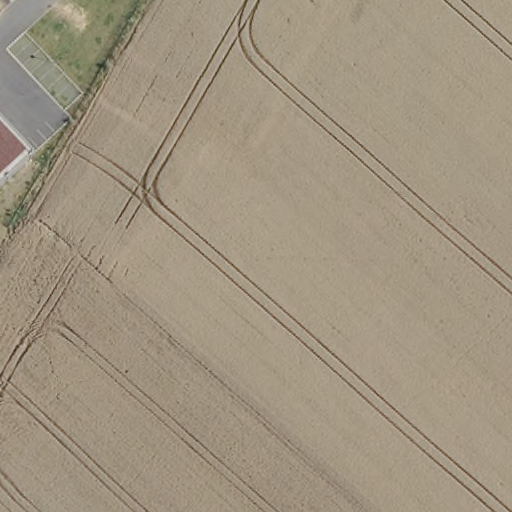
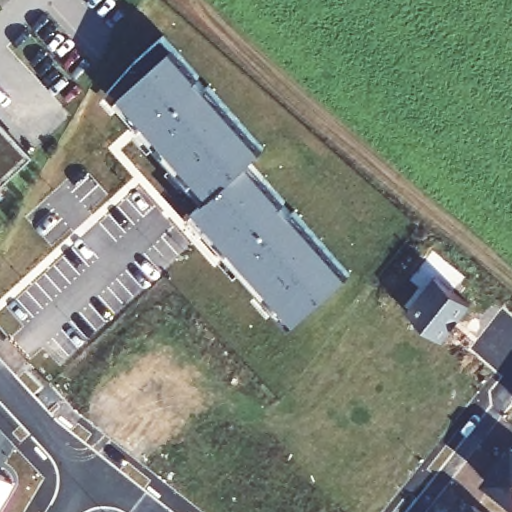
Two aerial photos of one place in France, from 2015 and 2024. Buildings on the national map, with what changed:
new [(136,61),(163,36),(264,146),(249,160),(350,272),(290,327),(190,216),(203,203),(107,94),(136,61)]
unchanged [(0,185),(0,119),(33,155),(0,185)]
new [(406,312),(435,275),(472,304),(442,341),(406,312)]
new [(482,481),(512,443),(512,505),(482,481)]
new [(0,508),(0,474),(15,483),(0,508)]
new [(473,504),(484,512),(467,512),(473,504)]

